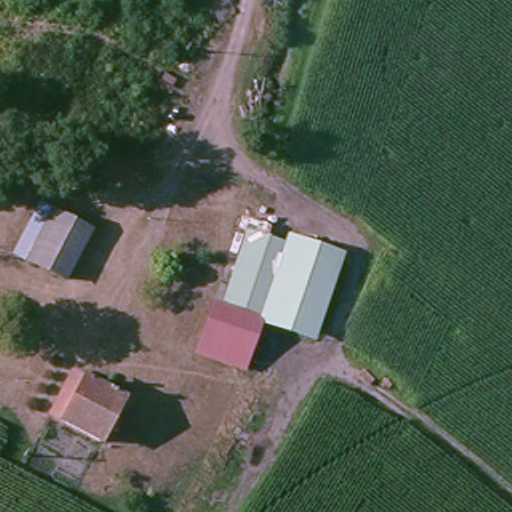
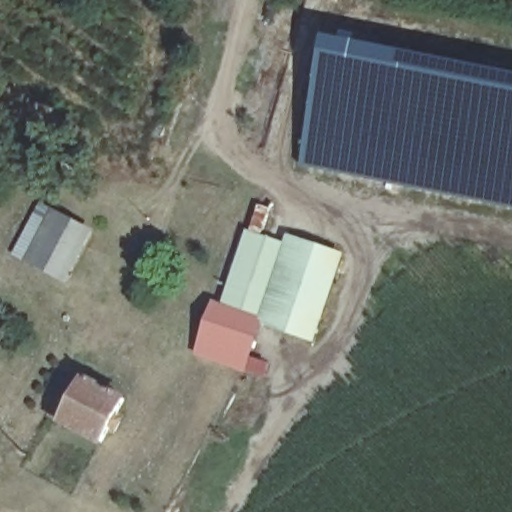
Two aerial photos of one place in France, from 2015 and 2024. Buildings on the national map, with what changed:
new [(314,105),(325,36),(405,53),(402,65),(512,88),(512,209),(343,176),(297,166),(314,105)]
unchanged [(74,285),(6,246),(34,200),(101,240),(74,285)]
unchanged [(262,320),(222,305),(247,230),(285,244),(262,320)]
unchanged [(345,254),(317,344),(260,325),(262,320),(285,244),(288,235),(345,254)]
unchanged [(212,301),(222,305),(262,320),(260,325),(244,371),(192,353),(212,301)]
unchanged [(83,377),(120,398),(98,440),(61,421),(83,377)]

